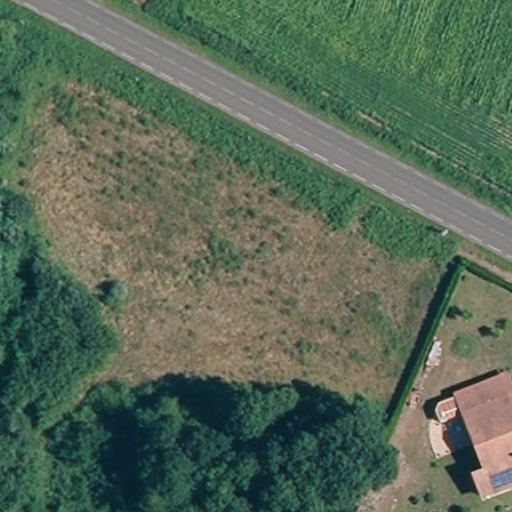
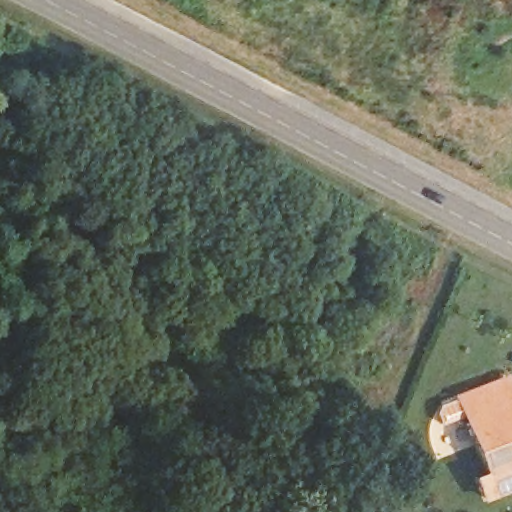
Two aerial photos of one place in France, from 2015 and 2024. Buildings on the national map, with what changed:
unchanged [(488,494),(482,473),(488,471),(464,392),(512,378),(512,487),(488,494)]

